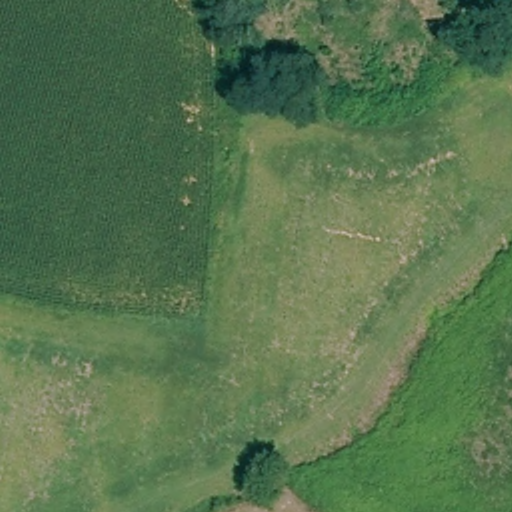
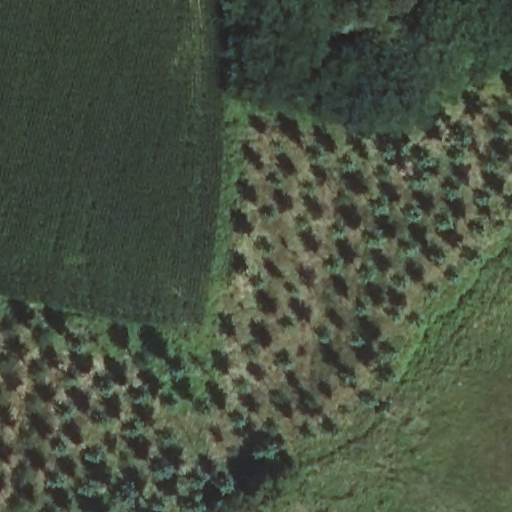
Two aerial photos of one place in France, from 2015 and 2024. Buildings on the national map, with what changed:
[]

